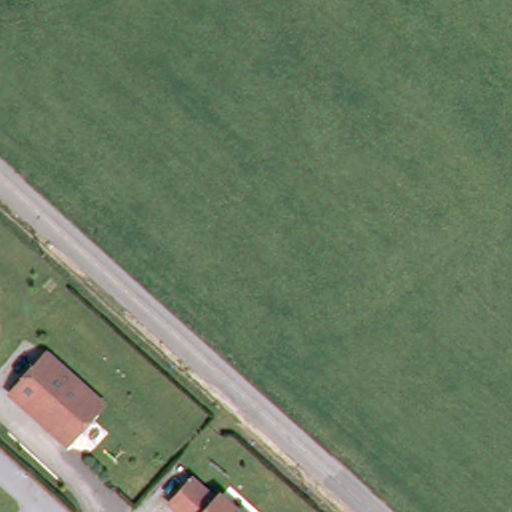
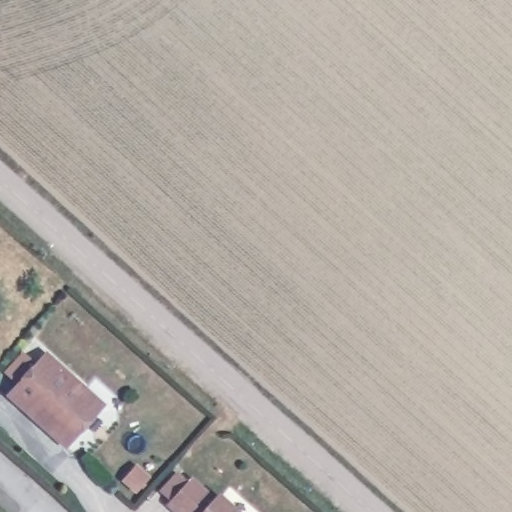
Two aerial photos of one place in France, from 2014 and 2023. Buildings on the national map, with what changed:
unchanged [(7,395),(42,355),(100,406),(64,445),(43,427),(36,421),(7,395)]
unchanged [(170,506),(191,481),(215,502),(218,497),(236,512),(177,512),(170,506)]

